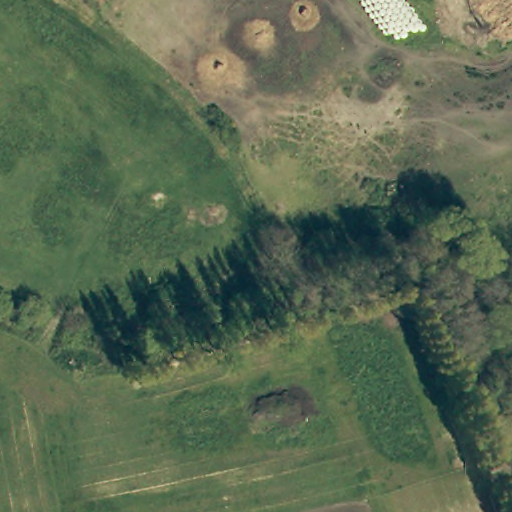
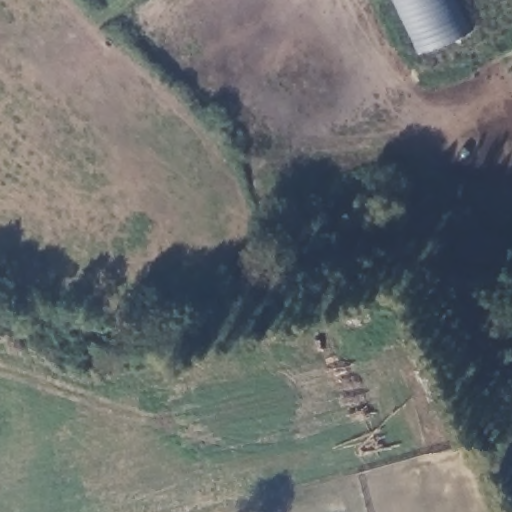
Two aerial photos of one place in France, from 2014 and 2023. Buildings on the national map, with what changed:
new [(415,53),(390,0),(459,0),(473,29),(415,53)]

